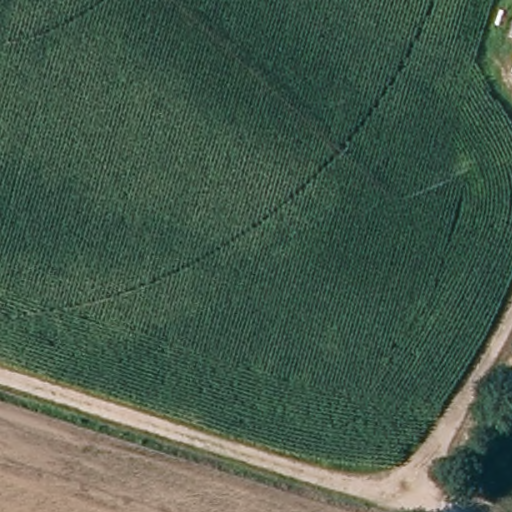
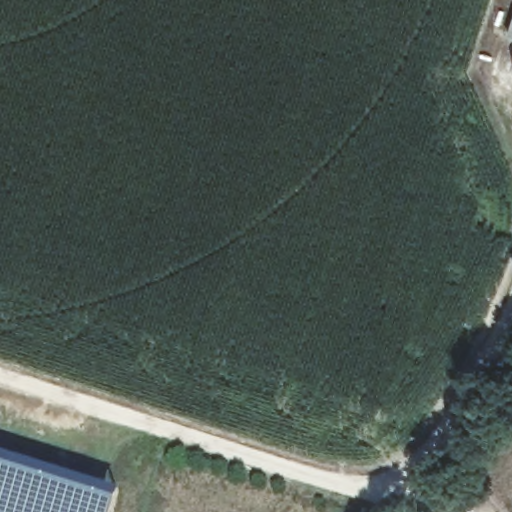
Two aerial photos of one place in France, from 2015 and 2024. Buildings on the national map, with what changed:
new [(102,490),(105,484),(116,488),(108,512),(0,512),(0,459),(102,490)]

